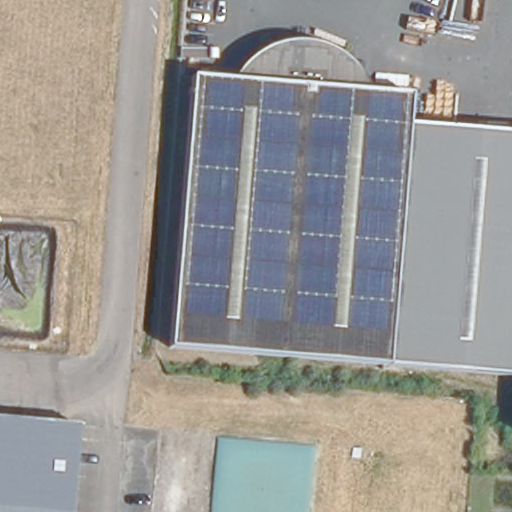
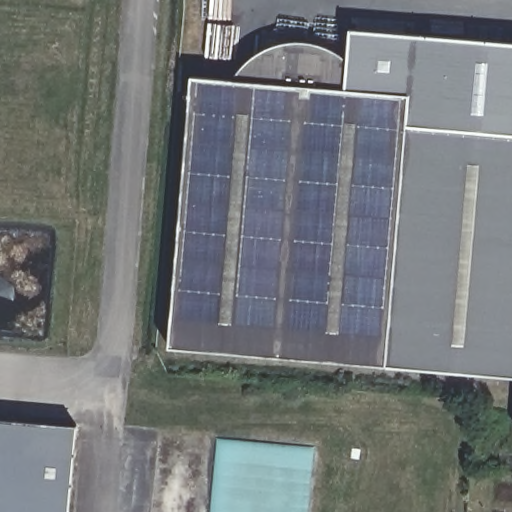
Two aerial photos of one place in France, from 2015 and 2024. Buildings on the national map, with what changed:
new [(353,29),(512,42),(512,133),(410,125),(413,97),(346,90),(350,60),(353,29)]
unchanged [(185,73),(253,80),(257,50),(259,48),(262,46),(265,44),(271,41),(275,40),(280,38),(286,37),(297,36),(308,37),(313,38),(321,40),(326,42),(334,46),(338,49),(342,53),(345,56),(350,60),(346,90),(413,97),(410,125),(383,372),(155,346),(185,73)]
unchanged [(410,125),(512,133),(512,376),(383,372),(410,125)]
unchanged [(66,512),(0,512),(0,418),(73,423),(66,512)]

